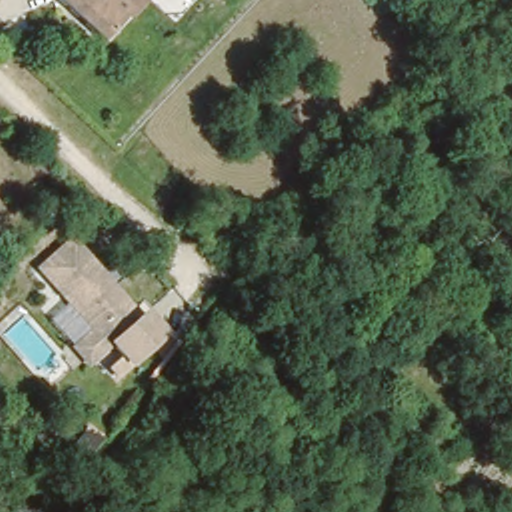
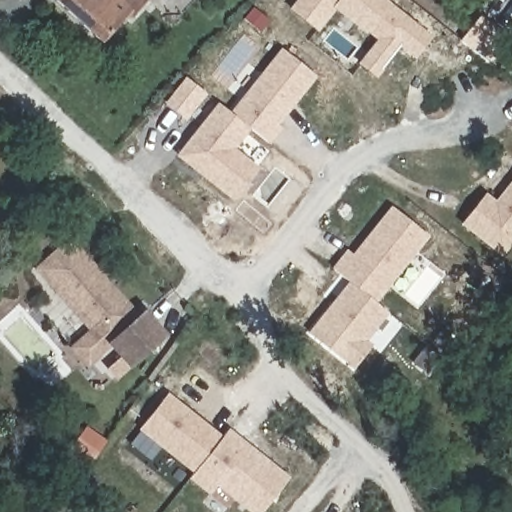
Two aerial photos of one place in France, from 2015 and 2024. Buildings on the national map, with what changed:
unchanged [(130,14),(125,10),(102,37),(60,0),(143,0),(130,14)]
new [(296,0),(387,0),(432,35),(415,59),(400,46),(382,69),(383,70),(377,79),(357,64),(376,40),(367,32),(365,34),(335,10),(318,32),(288,9),(296,0)]
new [(317,77),(279,125),(282,128),(270,144),(250,130),(236,149),(260,168),(234,202),(175,156),(218,102),(230,112),(281,48),(317,77)]
new [(185,77),(207,94),(186,122),(165,104),(185,77)]
new [(496,201),(512,181),(512,245),(501,258),(461,225),(486,193),(496,201)]
new [(430,237),(376,304),(390,313),(367,341),(373,346),(354,370),(309,333),(348,282),(331,268),(347,250),(353,254),(391,206),(430,237)]
unchanged [(75,356),(83,347),(92,336),(35,278),(65,247),(136,319),(99,361),(90,370),(75,356)]
new [(136,319),(146,310),(167,335),(130,370),(128,368),(117,381),(106,370),(118,356),(110,348),(136,319)]
new [(187,479),(192,473),(137,431),(169,394),(221,437),(227,429),(288,478),(261,512),(248,512),(210,482),(203,491),(187,479)]
new [(71,447),(85,427),(105,442),(90,462),(71,447)]

